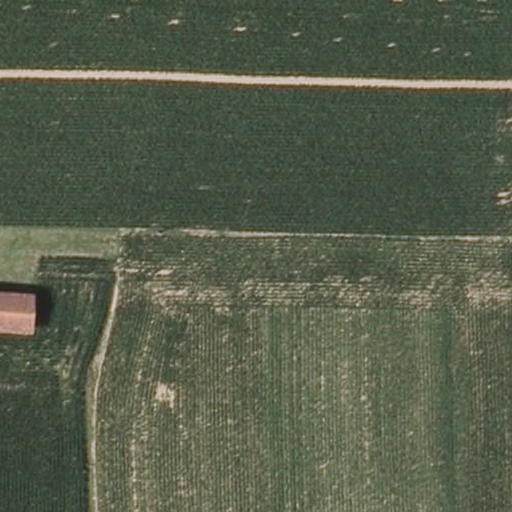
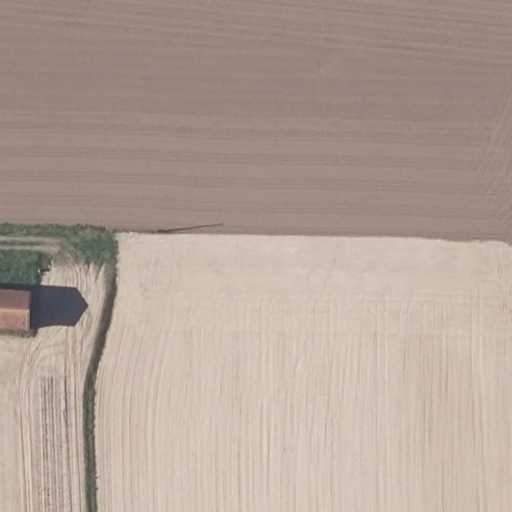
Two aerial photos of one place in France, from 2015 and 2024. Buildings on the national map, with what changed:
unchanged [(0,328),(0,297),(31,299),(28,330),(0,328)]

